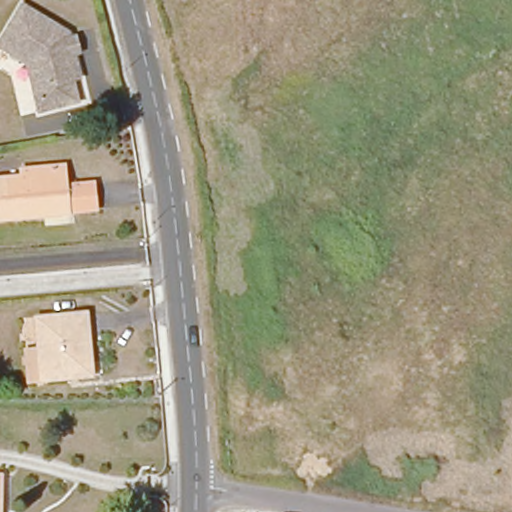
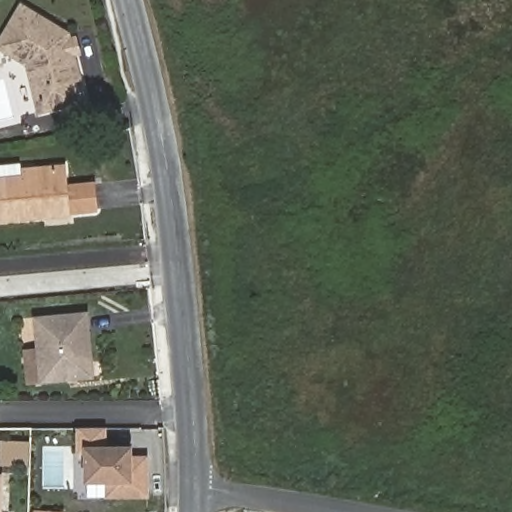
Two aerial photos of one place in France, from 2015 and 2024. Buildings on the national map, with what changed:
unchanged [(69,33),(71,39),(77,37),(80,51),(74,52),(80,77),(73,79),(79,100),(42,110),(30,62),(1,49),(22,8),(69,33)]
unchanged [(0,229),(0,190),(22,187),(22,180),(63,176),(65,197),(92,194),(95,221),(68,223),(67,218),(37,221),(38,226),(0,229)]
unchanged [(37,330),(85,325),(91,386),(42,390),(37,330)]
new [(149,498),(106,498),(106,483),(84,483),(83,455),(76,455),(76,427),(107,427),(107,445),(132,445),(132,456),(149,455),(149,498)]
new [(30,441),(29,467),(0,466),(0,440),(30,441)]

